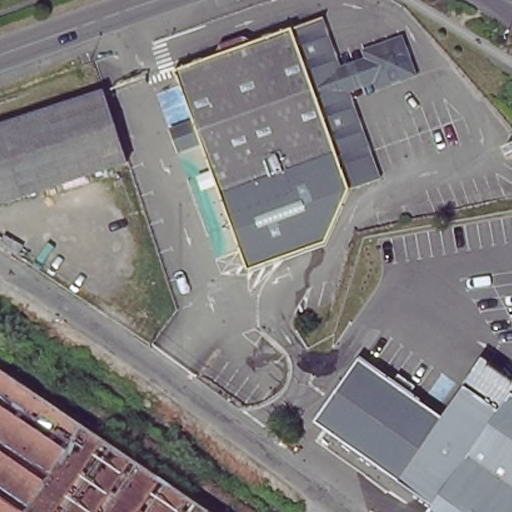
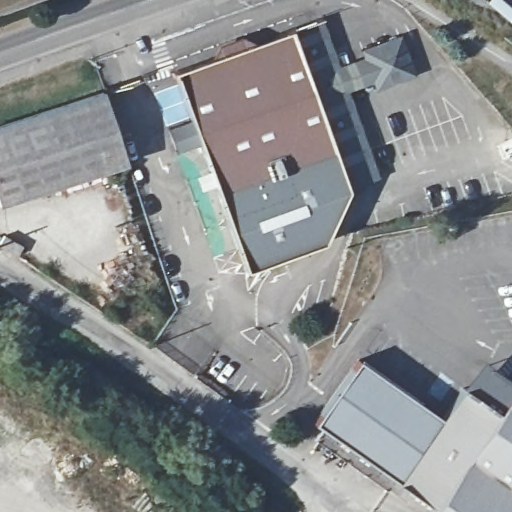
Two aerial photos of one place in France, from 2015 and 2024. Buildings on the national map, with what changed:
unchanged [(284,1),(287,0),(319,0),(344,67),(354,93),(382,178),(354,188),(295,31),(285,2),(284,1)]
unchanged [(169,45),(285,2),(295,31),(179,75),(169,45)]
unchanged [(331,246),(251,277),(223,195),(205,146),(182,155),(174,134),(198,125),(179,75),(295,31),(355,192),(331,246)]
unchanged [(344,67),(370,59),(368,50),(407,36),(422,75),(382,90),(380,83),(354,93),(344,67)]
unchanged [(124,159),(0,199),(0,122),(101,90),(124,159)]
unchanged [(0,243),(0,233),(2,230),(18,239),(12,250),(0,243)]
demolished [(345,308),(373,241),(408,256),(378,320),(345,308)]
unchanged [(442,418),(373,370),(406,323),(461,362),(449,377),(465,390),(442,418)]
unchanged [(398,482),(314,423),(360,360),(373,370),(442,418),(398,482)]
demolished [(0,370),(210,512),(0,512),(0,370)]
unchanged [(465,390),(499,412),(511,395),(512,396),(512,512),(425,512),(430,505),(398,482),(442,418),(465,390)]

